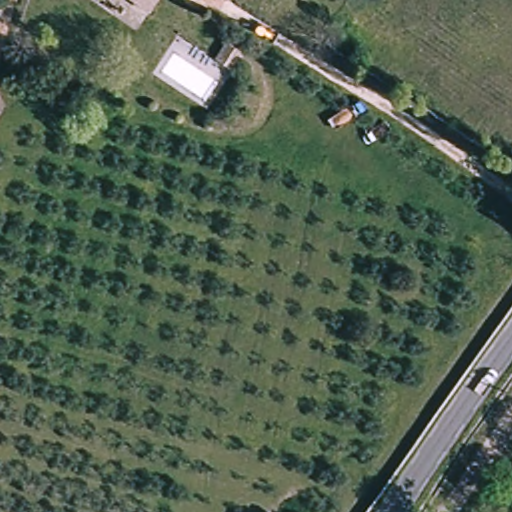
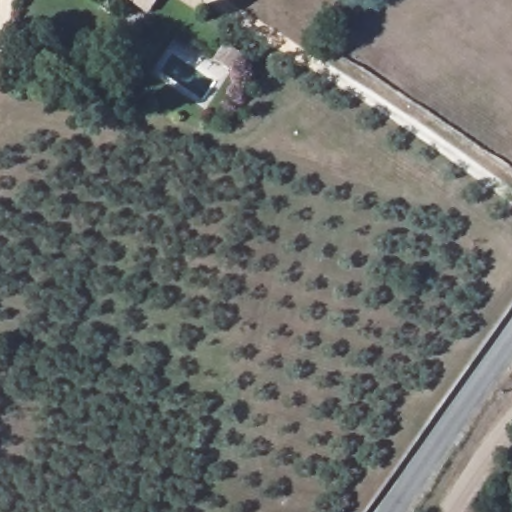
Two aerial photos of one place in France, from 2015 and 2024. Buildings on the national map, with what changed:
unchanged [(129,0),(147,0),(140,9),(129,0)]
unchanged [(199,28),(214,40),(202,56),(186,44),(199,28)]

